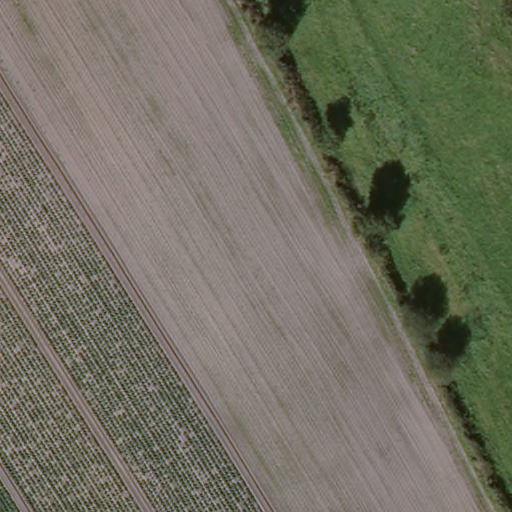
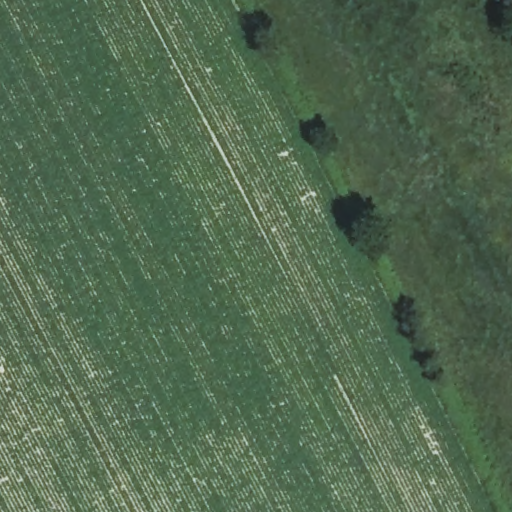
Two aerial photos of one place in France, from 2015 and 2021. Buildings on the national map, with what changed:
[]

